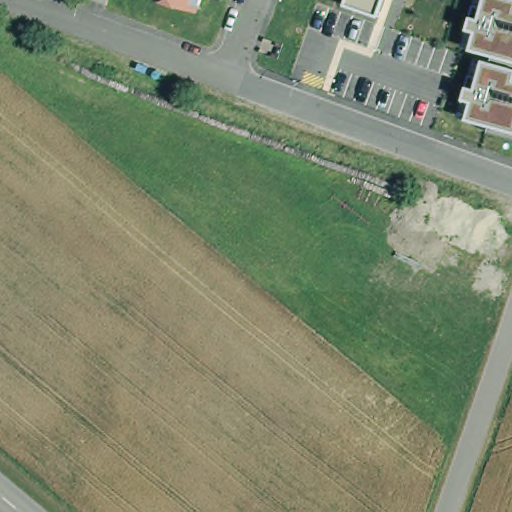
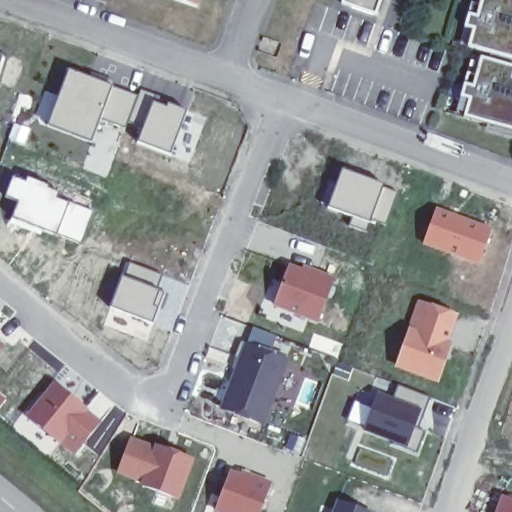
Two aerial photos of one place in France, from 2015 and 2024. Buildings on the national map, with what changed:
unchanged [(101,0),(106,0),(105,2),(101,0)]
unchanged [(178,0),(200,0),(197,7),(178,0)]
unchanged [(345,0),(381,0),(376,15),(344,4),(345,0)]
unchanged [(472,4),(481,7),(483,0),(512,0),(512,59),(470,47),(462,44),(466,27),(470,14),(472,4)]
new [(5,58),(0,78),(0,57),(5,58)]
unchanged [(512,130),(466,117),(457,114),(463,97),(467,85),(469,74),(477,77),(482,58),(512,67),(512,130)]
new [(137,97),(126,129),(98,120),(90,144),(48,127),(68,72),(137,97)]
new [(168,110),(170,105),(187,112),(172,155),(140,142),(145,129),(131,124),(142,91),(156,95),(155,105),(168,110)]
new [(384,189),(397,193),(387,226),(372,221),(371,225),(367,233),(352,227),(355,218),(330,209),(343,171),(385,186),(384,189)]
new [(27,184),(30,177),(60,187),(56,201),(93,214),(82,245),(13,221),(19,204),(7,200),(14,179),(27,184)]
new [(492,227),(482,265),(421,249),(432,210),(492,227)]
new [(154,308),(159,310),(153,324),(112,308),(124,278),(131,265),(162,276),(157,290),(160,292),(154,308)]
new [(335,280),(320,326),(274,308),(288,266),(335,280)]
new [(421,303),(455,316),(446,343),(451,346),(438,380),(397,366),(410,331),(421,303)]
new [(314,332),(343,343),(337,358),(307,347),(314,332)]
new [(7,347),(0,354),(0,340),(7,347)]
new [(220,410),(246,343),(291,359),(265,427),(220,410)]
new [(100,423),(75,455),(27,416),(52,382),(100,423)]
new [(432,398),(420,428),(427,432),(417,452),(408,448),(364,431),(378,392),(394,398),(400,386),(432,398)]
new [(141,482),(117,475),(130,438),(155,447),(157,444),(197,458),(180,501),(140,486),(141,482)]
new [(272,485),(263,512),(215,512),(230,472),(272,485)]
new [(337,498),(372,512),(332,512),(337,498)]

